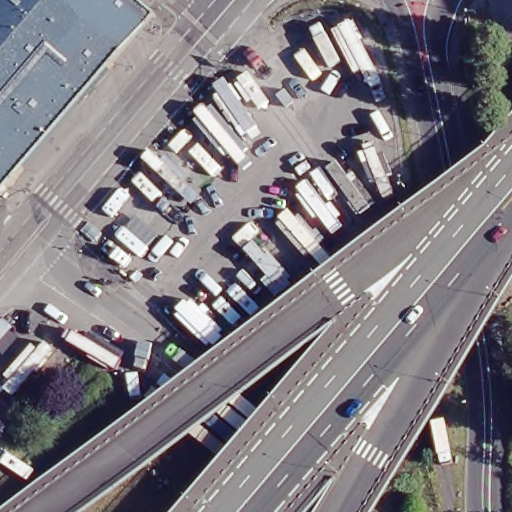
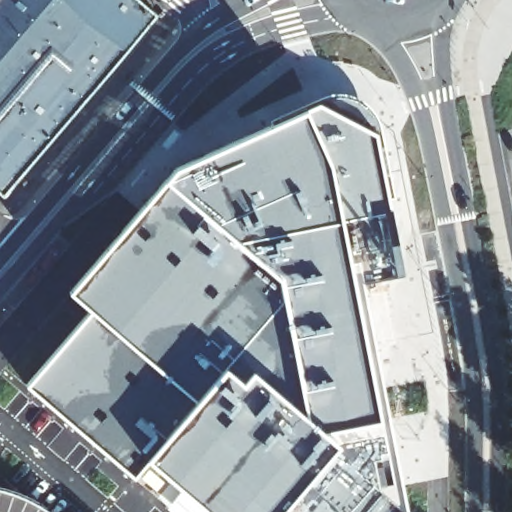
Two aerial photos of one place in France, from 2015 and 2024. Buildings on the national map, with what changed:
unchanged [(0,0),(144,0),(151,6),(152,15),(105,71),(17,173),(3,189),(0,187),(0,0)]
new [(370,102),(380,117),(395,194),(387,194),(405,274),(362,280),(408,511),(407,512),(211,512),(147,459),(136,473),(29,382),(92,309),(71,291),(165,179),(176,166),(278,123),(274,116),(339,91),(356,93),(370,102)]
new [(0,512),(0,507),(12,512),(0,512)]

